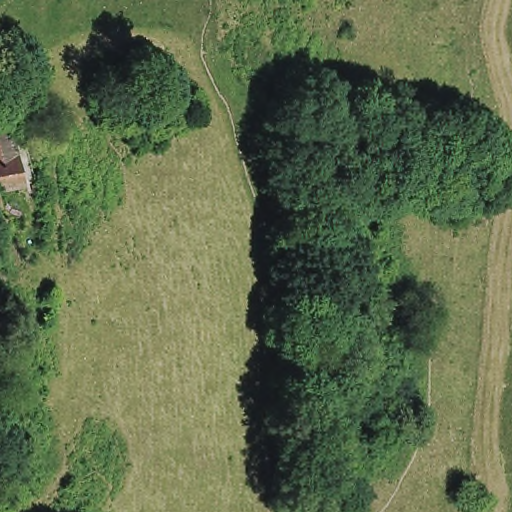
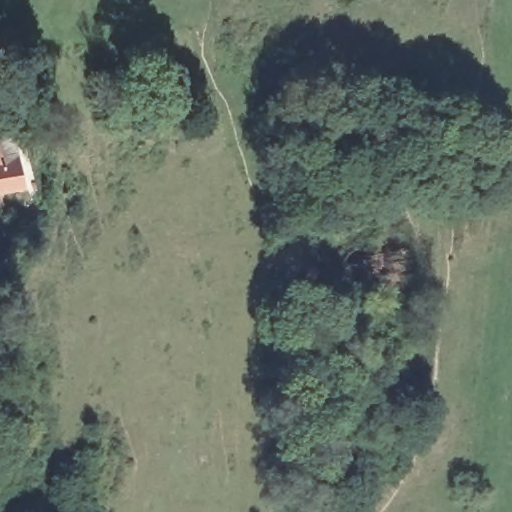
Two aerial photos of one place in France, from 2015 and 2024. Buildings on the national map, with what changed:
unchanged [(12,154),(14,154),(19,181),(0,185),(0,125),(5,124),(12,154)]

